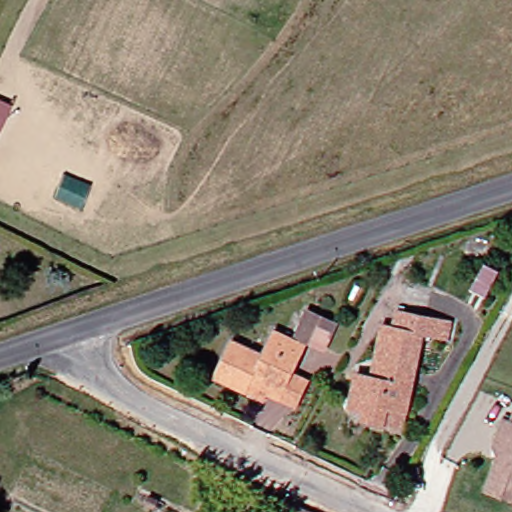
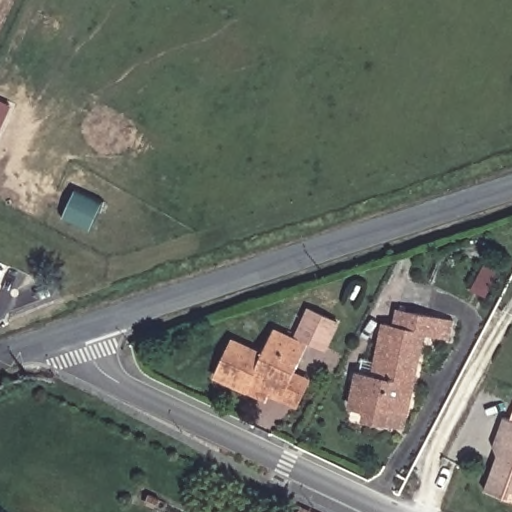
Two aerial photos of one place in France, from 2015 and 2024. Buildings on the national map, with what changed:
unchanged [(310,308),(343,321),(327,352),(313,346),(311,351),(293,343),(310,308)]
unchanged [(452,339),(427,334),(420,373),(415,372),(412,384),(417,384),(412,413),(395,409),(392,424),(368,420),(370,411),(356,408),(363,373),(378,376),(389,324),(400,326),(403,312),(455,321),(452,339)]
unchanged [(297,379),(313,386),(302,411),(286,404),(288,399),(257,386),(252,397),(220,382),(237,346),(267,360),(280,335),(293,343),(311,351),(297,379)]
unchanged [(506,454),(501,444),(512,415),(512,496),(493,489),(506,454)]
unchanged [(155,507),(147,503),(150,496),(158,500),(155,507)]
unchanged [(306,508),(307,505),(322,512),(303,512),(306,508)]

